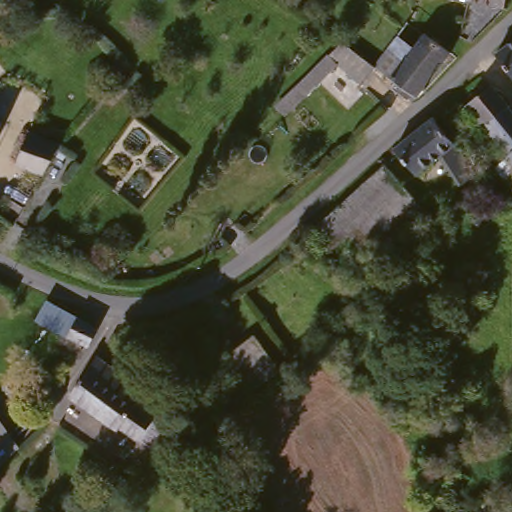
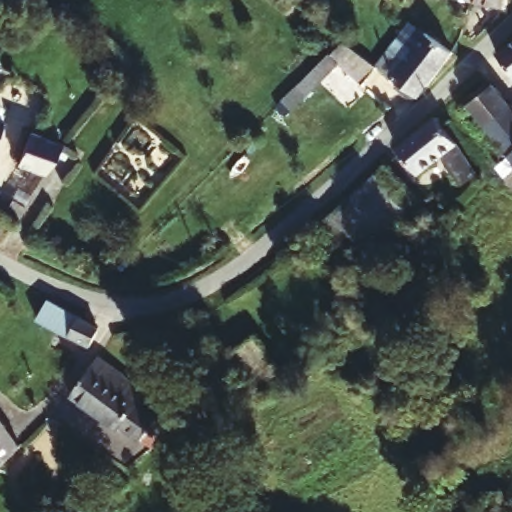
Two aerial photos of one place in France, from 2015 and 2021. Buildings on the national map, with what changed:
unchanged [(469,0),(503,0),(500,10),(469,0)]
unchanged [(277,104),(297,84),(340,41),(369,69),(390,50),(403,63),(420,39),(448,56),(418,101),(385,81),(376,74),(359,89),(337,65),(306,95),(287,113),(277,104)]
unchanged [(512,48),(512,65),(504,55),(512,48)]
unchanged [(484,129),(472,112),(495,92),(500,98),(512,113),(512,192),(496,169),(507,159),(487,133),(484,129)]
unchanged [(415,186),(393,160),(430,130),(452,112),(474,136),(453,153),(479,183),(464,198),(438,166),(415,186)]
unchanged [(48,187),(18,176),(30,138),(58,144),(48,187)]
unchanged [(361,249),(349,230),(329,242),(315,222),(376,174),(385,166),(419,205),(407,215),(410,218),(361,249)]
unchanged [(21,217),(1,244),(0,243),(0,208),(21,217)]
unchanged [(98,331),(84,352),(60,343),(35,332),(46,305),(71,318),(98,331)]
unchanged [(249,337),(267,364),(236,385),(218,357),(249,337)]
unchanged [(161,436),(140,455),(132,446),(127,450),(79,404),(111,371),(118,378),(161,436)]
unchanged [(10,455),(0,466),(0,439),(10,455)]
unchanged [(512,491),(512,512),(477,512),(512,491)]

